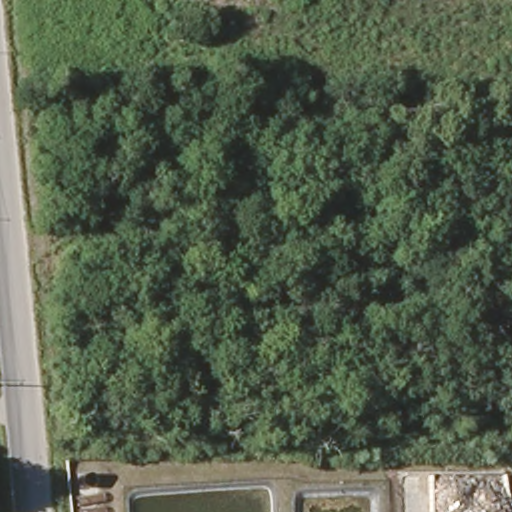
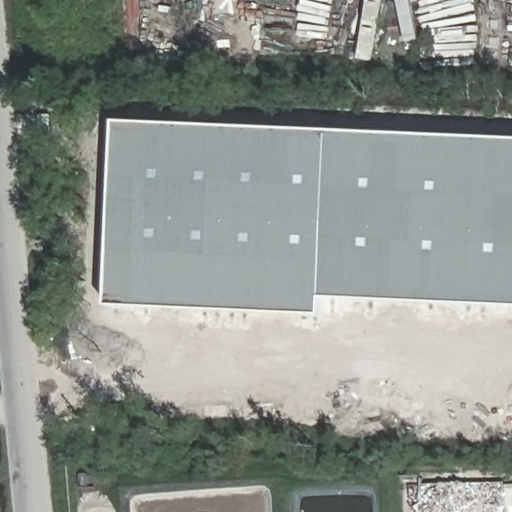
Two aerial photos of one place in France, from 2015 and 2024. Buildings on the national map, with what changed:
new [(325,297),(324,315),(110,306),(120,122),(512,140),(512,307),(325,297)]

